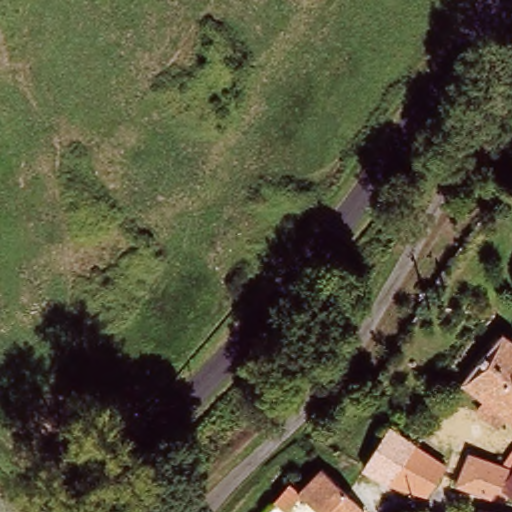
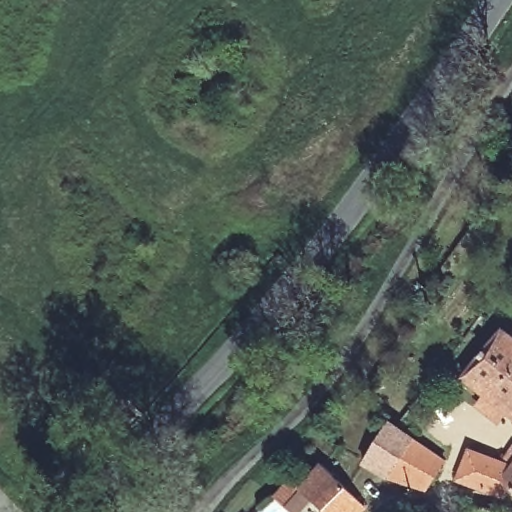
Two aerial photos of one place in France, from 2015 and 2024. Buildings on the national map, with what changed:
unchanged [(470,410),(478,399),(456,383),(491,335),(512,349),(512,424),(498,413),(490,425),(470,410)]
unchanged [(413,442),(387,476),(359,463),(391,423),(399,430),(413,442)]
unchanged [(442,464),(433,480),(428,490),(387,476),(413,442),(442,464)]
unchanged [(509,492),(505,489),(499,497),(488,495),(504,469),(506,466),(495,459),(503,447),(512,453),(512,494),(509,492)]
unchanged [(488,495),(443,481),(465,450),(504,469),(488,495)]
unchanged [(270,504),(287,486),(311,461),(357,502),(348,512),(319,512),(310,505),(302,512),(280,512),(270,504)]

